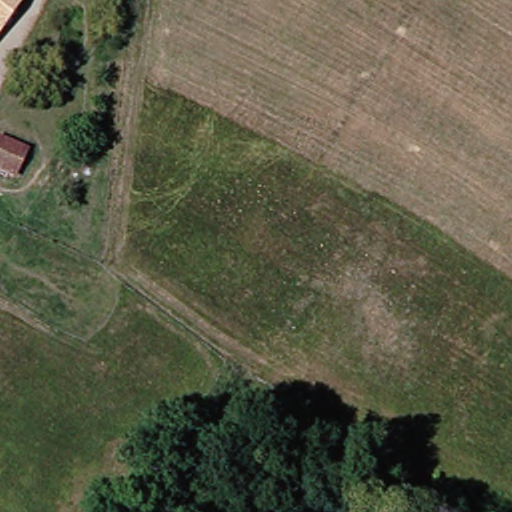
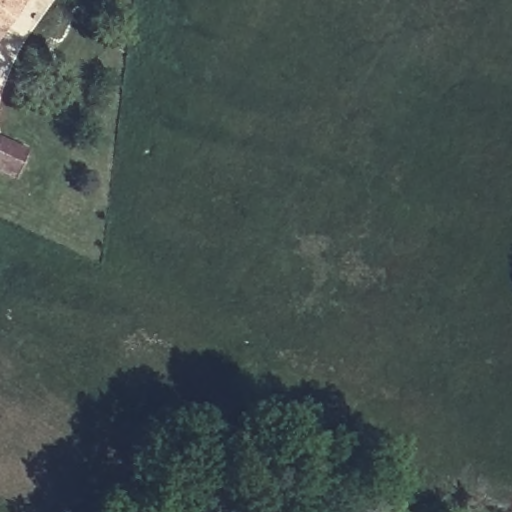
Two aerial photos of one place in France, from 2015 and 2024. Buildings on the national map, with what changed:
unchanged [(0,0),(21,0),(0,34),(0,0)]
unchanged [(29,146),(14,178),(0,172),(0,142),(2,136),(29,146)]

